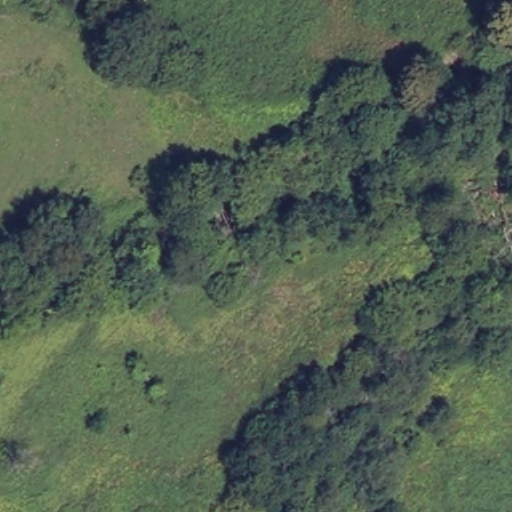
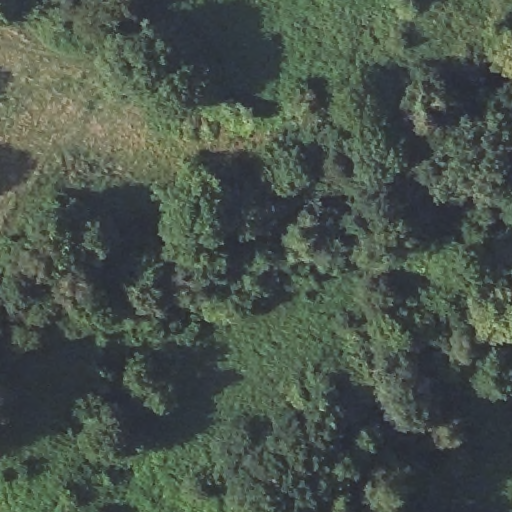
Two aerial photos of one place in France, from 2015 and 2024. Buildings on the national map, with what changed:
[]

